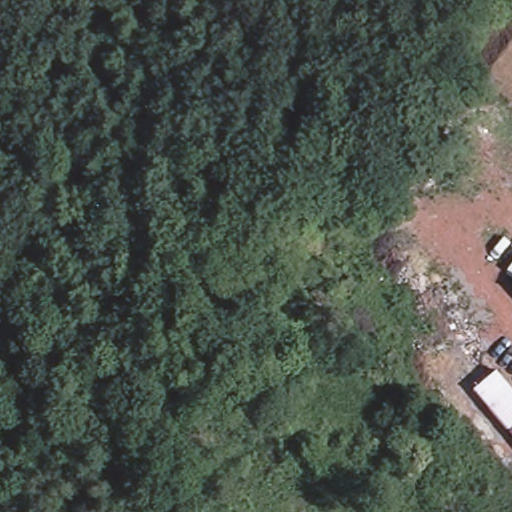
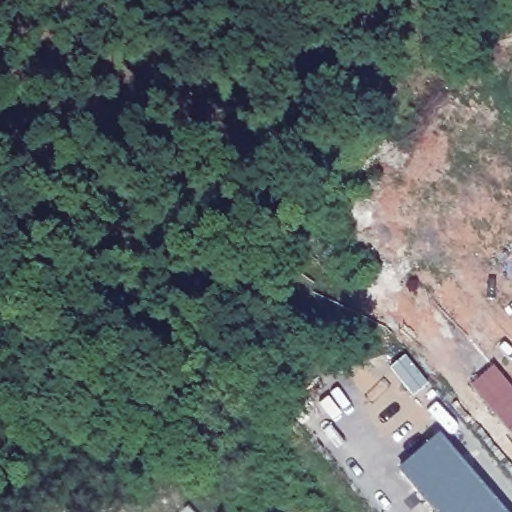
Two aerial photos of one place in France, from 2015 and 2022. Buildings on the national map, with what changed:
unchanged [(495,369),(512,389),(512,434),(472,388),(476,385),(468,377),(484,363),(492,372),(495,369)]
new [(509,512),(438,512),(399,468),(440,432),(509,512)]

